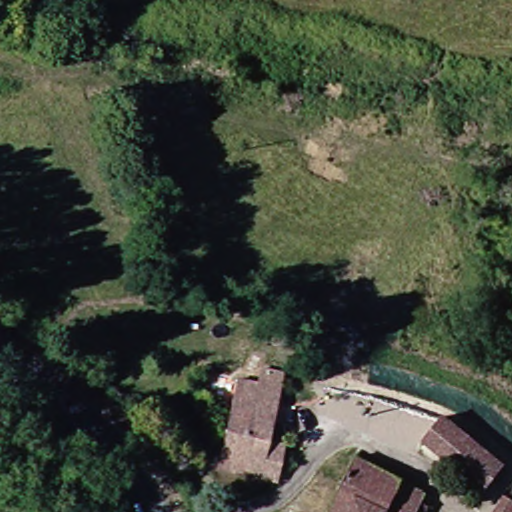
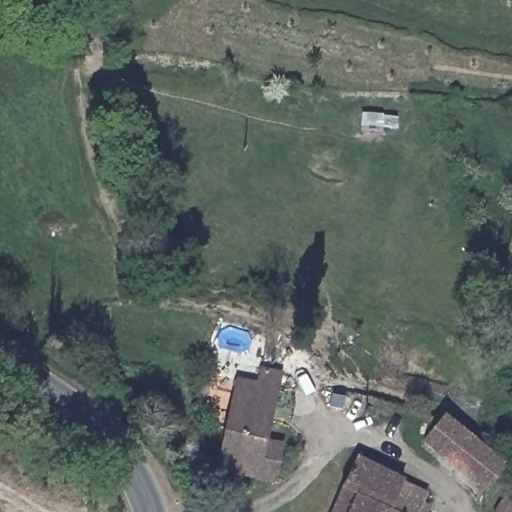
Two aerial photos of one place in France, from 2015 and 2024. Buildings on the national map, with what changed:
unchanged [(224,466),(237,395),(240,378),(285,389),(280,403),(262,476),(224,466)]
unchanged [(492,492),(427,441),(449,415),(511,464),(492,492)]
unchanged [(366,460),(437,497),(428,512),(342,512),(366,460)]
unchanged [(512,498),(512,512),(504,512),(512,498)]

